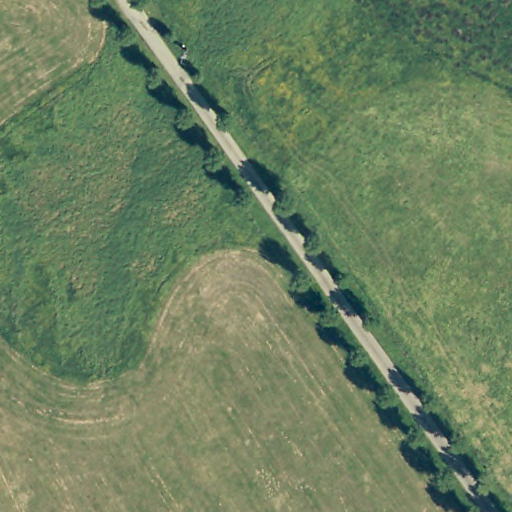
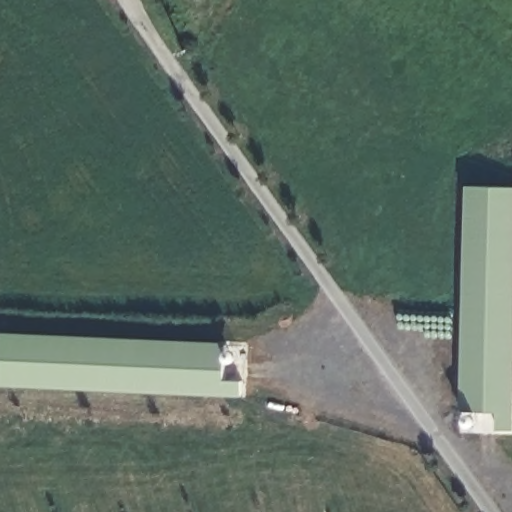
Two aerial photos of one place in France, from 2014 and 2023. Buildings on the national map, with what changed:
new [(498,411),(461,410),(466,184),(512,185),(512,430),(498,429),(498,411)]
new [(226,352),(224,378),(244,379),(243,395),(0,386),(0,340),(0,331),(222,340),(226,352)]

